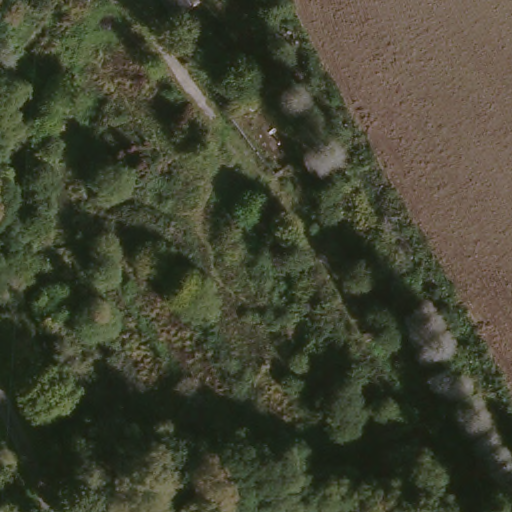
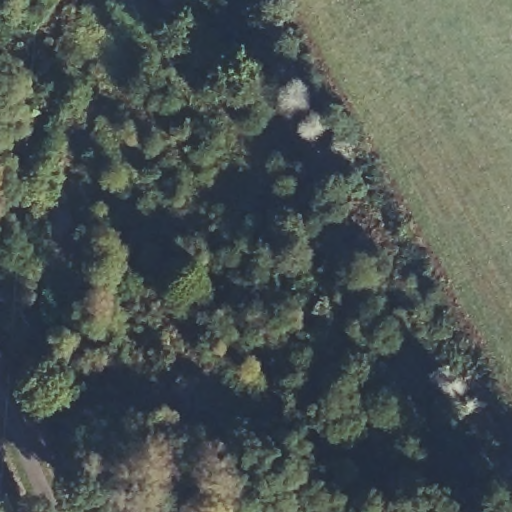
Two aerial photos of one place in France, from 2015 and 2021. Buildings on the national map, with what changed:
unchanged [(198,3),(171,22),(155,0),(195,0),(198,3)]

